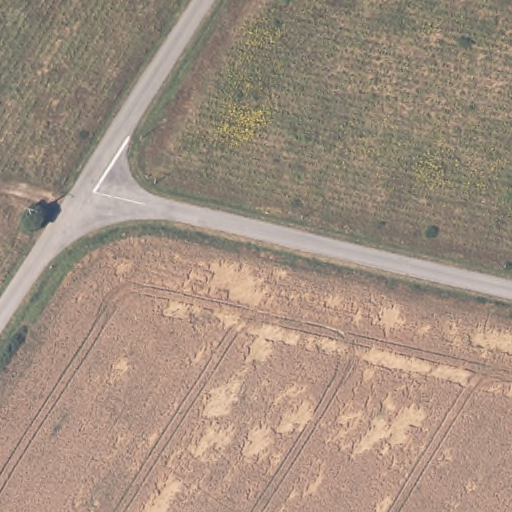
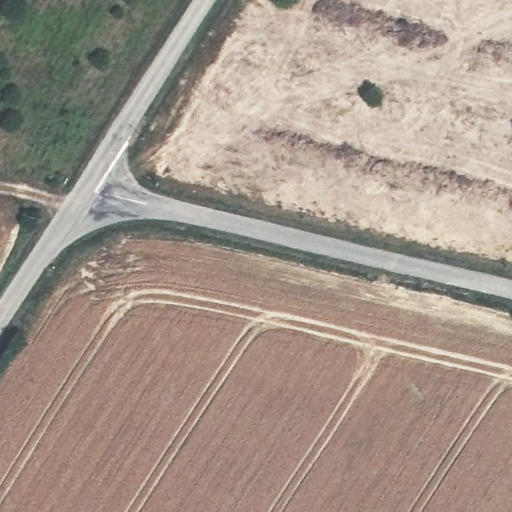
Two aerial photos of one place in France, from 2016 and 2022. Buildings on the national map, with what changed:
[]

